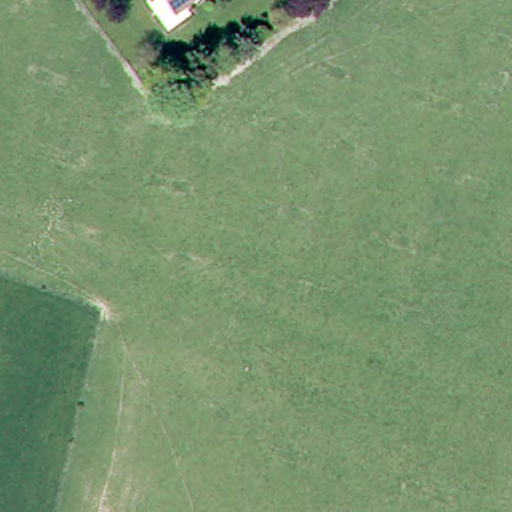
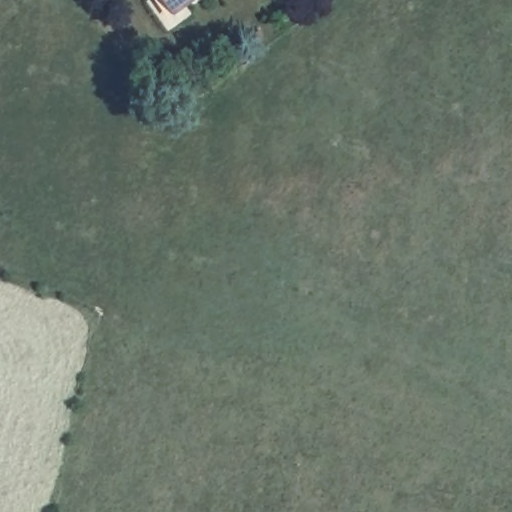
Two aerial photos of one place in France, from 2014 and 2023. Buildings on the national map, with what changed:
unchanged [(175,8),(169,0),(184,0),(175,8)]

